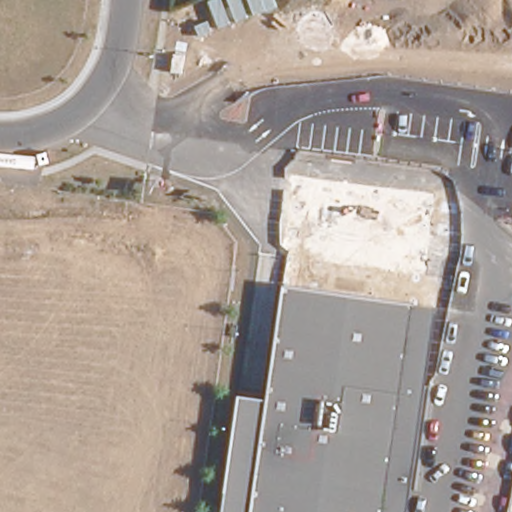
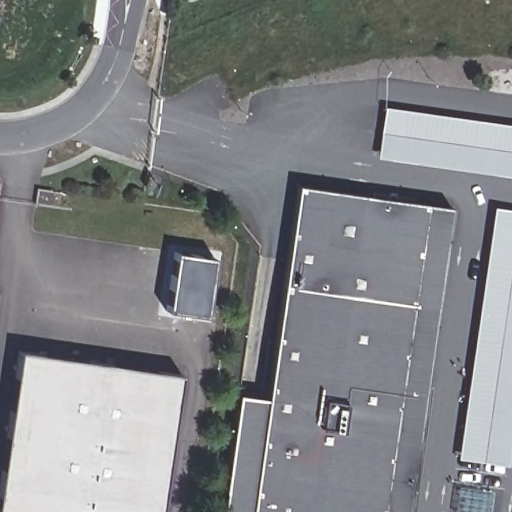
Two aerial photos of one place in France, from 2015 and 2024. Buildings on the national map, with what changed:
new [(512,125),(512,176),(376,157),(380,132),(384,107),(512,125)]
new [(297,185),(450,207),(440,282),(286,263),(297,185)]
new [(457,458),(493,207),(512,210),(512,412),(505,465),(457,458)]
new [(175,252),(212,256),(205,316),(167,311),(175,252)]
unchanged [(225,512),(240,397),(268,401),(286,263),(440,282),(408,512),(225,512)]
new [(76,512),(0,512),(0,478),(19,351),(180,374),(160,512),(90,512),(76,510),(76,512)]
demolished [(450,512),(473,442),(500,387),(512,368),(512,484),(502,512),(450,512)]

